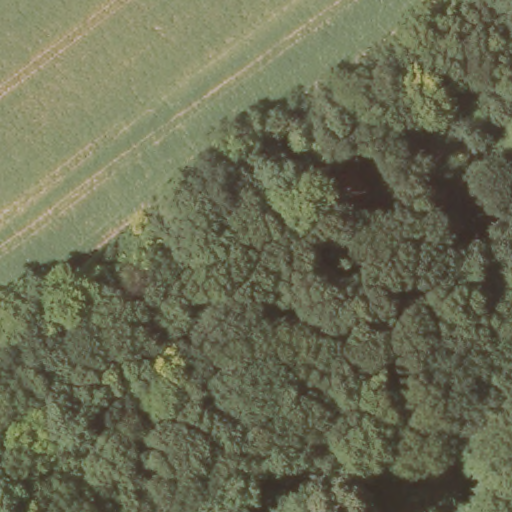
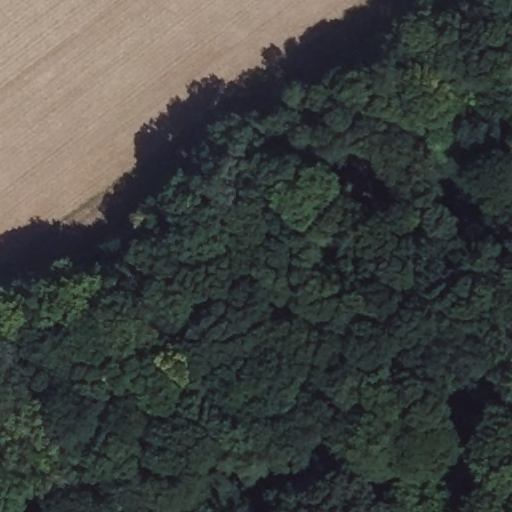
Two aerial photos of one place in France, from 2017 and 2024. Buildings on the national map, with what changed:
unchanged [(346,176),(359,193),(340,208),(327,191),(346,176)]

